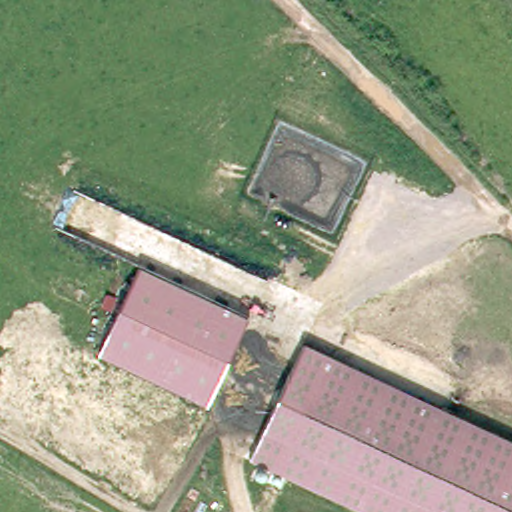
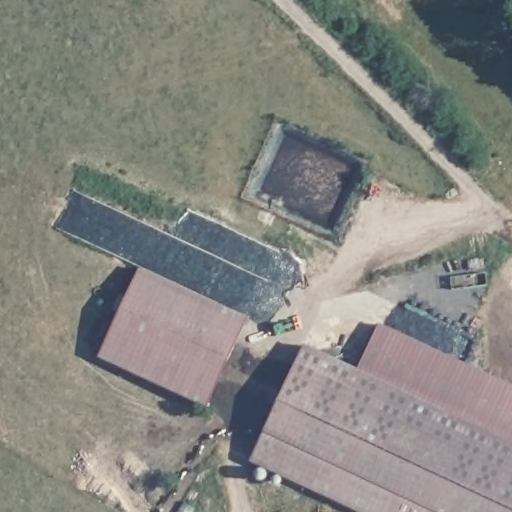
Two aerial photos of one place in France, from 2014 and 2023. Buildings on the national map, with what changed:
unchanged [(248,316),(207,406),(100,353),(139,265),(248,316)]
new [(512,441),(358,368),(380,322),(512,384),(512,441)]
unchanged [(512,512),(364,512),(252,460),(305,343),(512,441),(512,512)]

